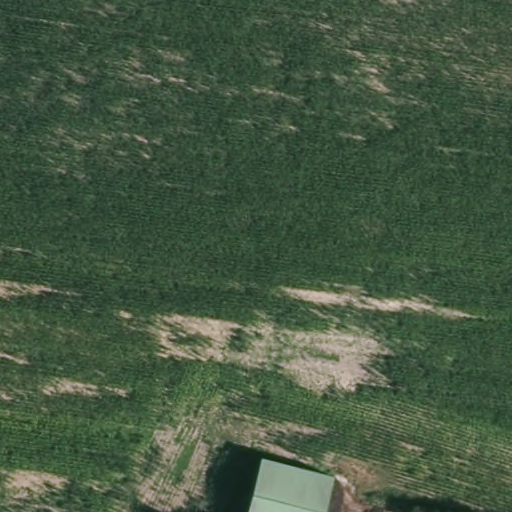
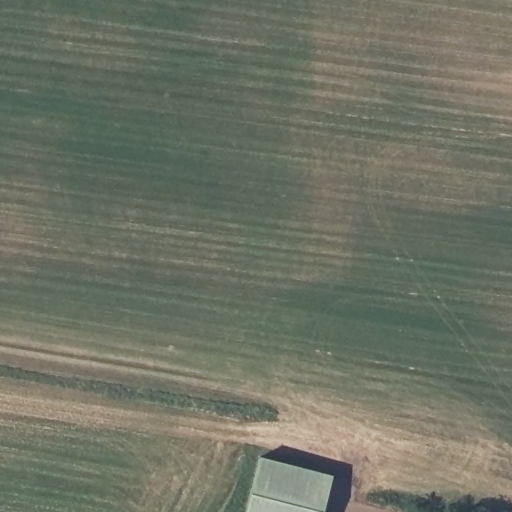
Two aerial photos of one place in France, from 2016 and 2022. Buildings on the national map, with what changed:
unchanged [(332,475),(324,512),(247,512),(261,456),(332,475)]

